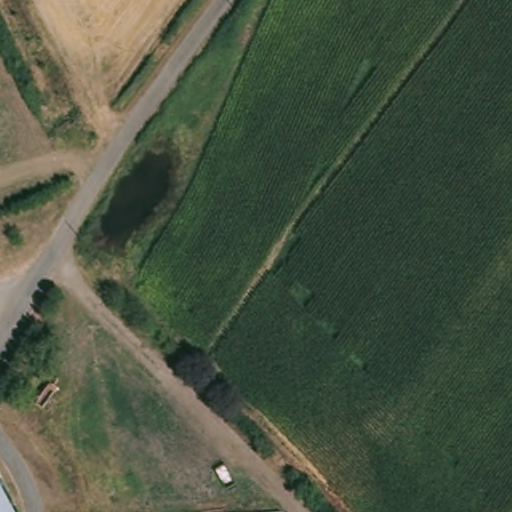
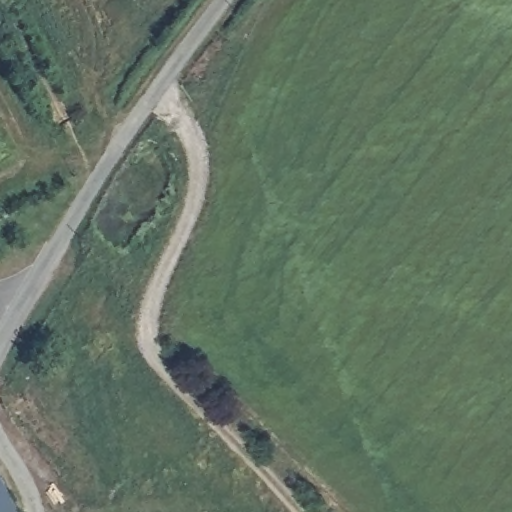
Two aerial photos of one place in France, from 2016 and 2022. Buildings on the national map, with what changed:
unchanged [(4,492),(14,512),(0,512),(0,486),(4,492)]
unchanged [(283,512),(272,512),(282,511),(283,512)]

